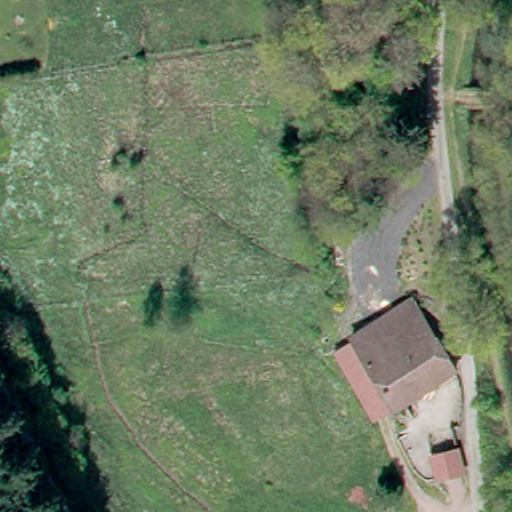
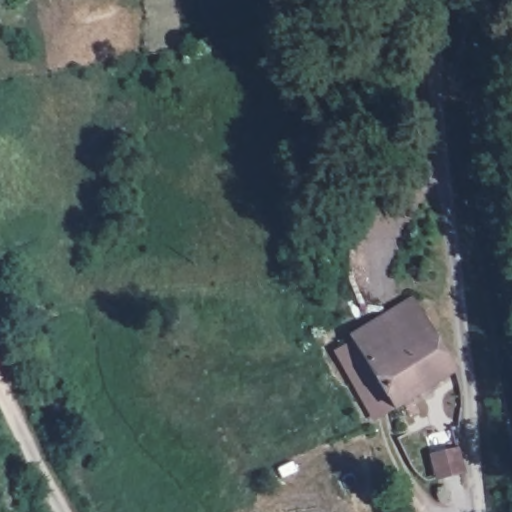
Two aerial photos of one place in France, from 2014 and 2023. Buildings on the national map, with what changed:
unchanged [(353,331),(412,290),(432,318),(390,348),(373,360),(353,331)]
unchanged [(461,358),(402,400),(385,377),(373,360),(390,348),(432,318),(461,358)]
unchanged [(432,471),(424,440),(447,433),(455,464),(432,471)]

